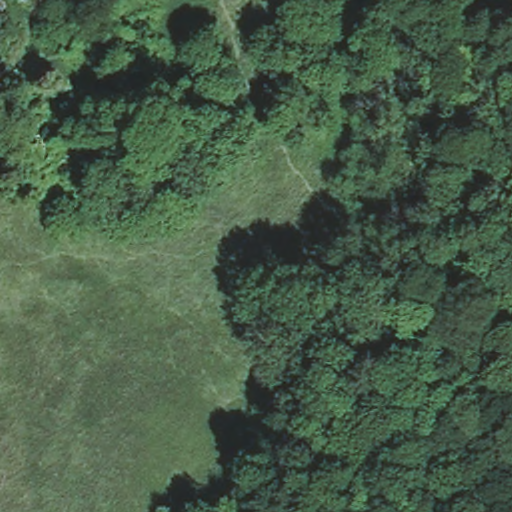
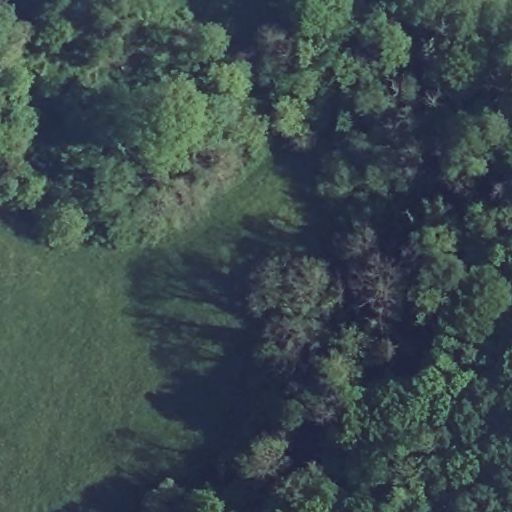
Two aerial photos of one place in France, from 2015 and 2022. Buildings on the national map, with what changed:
[]

